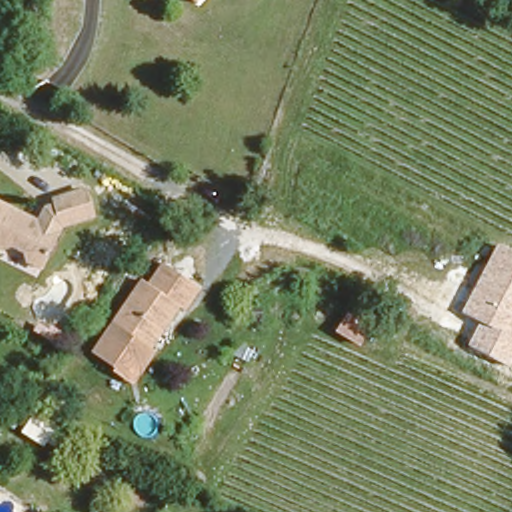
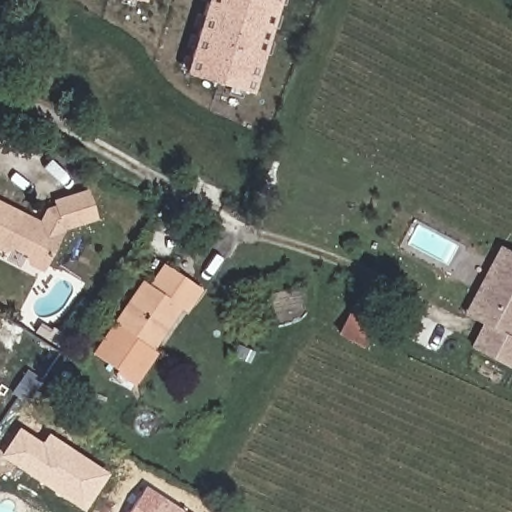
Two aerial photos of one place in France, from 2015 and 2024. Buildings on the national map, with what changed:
new [(249,92),(185,73),(207,0),(277,0),(249,92)]
demolished [(194,2),(191,0),(196,0),(194,2)]
unchanged [(29,259),(24,246),(9,240),(5,247),(0,245),(0,198),(23,209),(21,213),(37,221),(47,199),(55,202),(54,196),(87,184),(97,212),(65,224),(45,267),(29,259)]
unchanged [(512,252),(512,366),(511,368),(469,346),(481,323),(463,312),(499,245),(512,252)]
unchanged [(184,305),(156,346),(114,318),(142,276),(150,281),(166,258),(206,283),(189,308),(184,305)]
unchanged [(361,348),(336,333),(348,313),(370,327),(361,348)]
unchanged [(158,349),(135,385),(115,372),(116,368),(91,351),(114,318),(156,346),(158,349)]
new [(38,410),(68,430),(57,447),(49,441),(45,448),(23,432),(38,410)]
new [(108,472),(82,510),(0,456),(0,454),(18,427),(40,441),(47,433),(108,472)]
new [(126,512),(144,485),(186,512),(126,512)]

